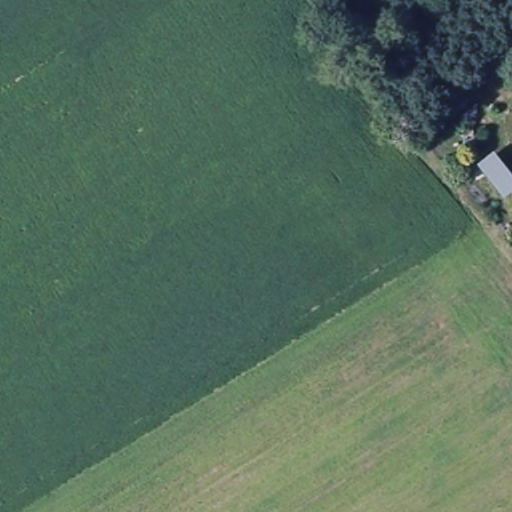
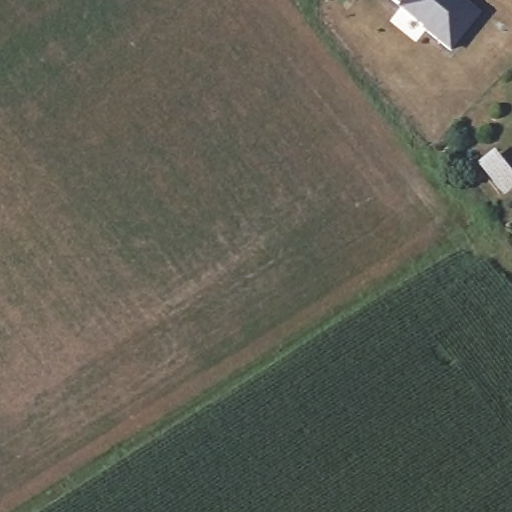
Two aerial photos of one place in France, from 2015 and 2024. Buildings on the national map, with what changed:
new [(398,10),(402,4),(398,0),(462,0),(480,16),(450,52),(398,10)]
unchanged [(512,172),(512,191),(504,197),(476,163),(494,150),(512,172)]

